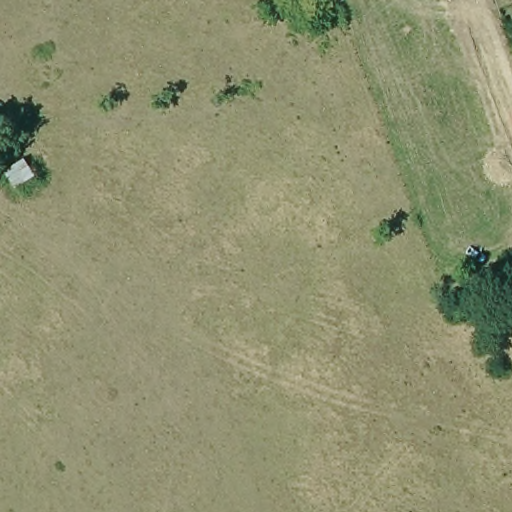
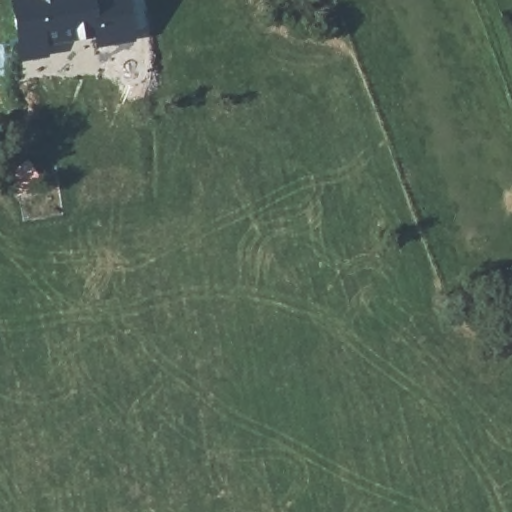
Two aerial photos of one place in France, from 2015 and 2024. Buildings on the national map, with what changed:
new [(135,41),(95,47),(93,37),(47,45),(48,56),(18,61),(9,0),(129,0),(135,41)]

